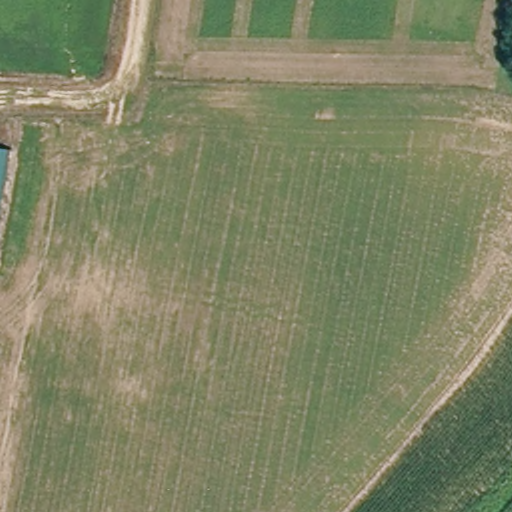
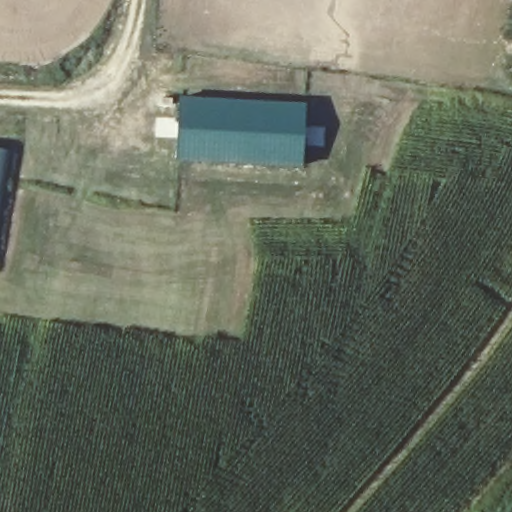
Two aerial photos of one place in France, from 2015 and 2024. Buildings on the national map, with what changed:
new [(155,116),(177,116),(178,95),(306,102),(303,166),(175,160),(176,139),(154,137),(155,116)]
unchanged [(7,150),(0,188),(0,148),(7,150)]

